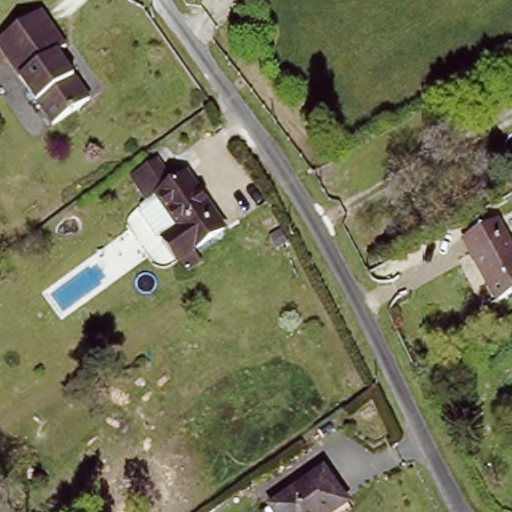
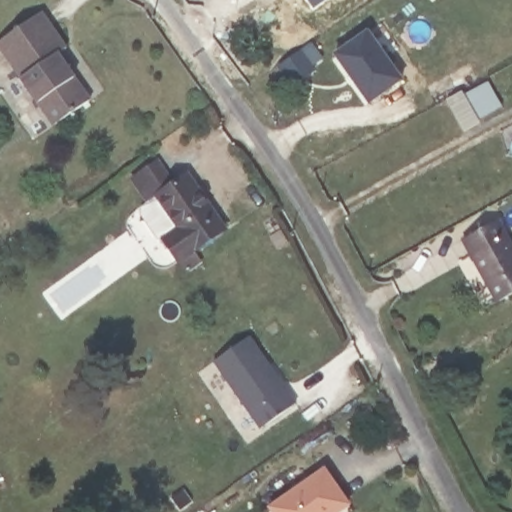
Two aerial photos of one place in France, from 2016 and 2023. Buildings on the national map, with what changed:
unchanged [(42,8),(68,45),(61,50),(90,94),(51,119),(0,44),(0,38),(42,8)]
new [(370,104),(337,56),(370,33),(405,80),(370,104)]
unchanged [(145,209),(146,203),(153,199),(138,176),(164,159),(178,181),(192,173),(228,226),(198,245),(205,256),(192,263),(186,253),(180,257),(167,235),(160,233),(145,209)]
unchanged [(500,223),(512,245),(512,297),(501,303),(466,242),(500,223)]
new [(262,429),(215,362),(252,337),(298,404),(262,429)]
unchanged [(325,480),(345,511),(343,512),(276,512),(325,480)]

